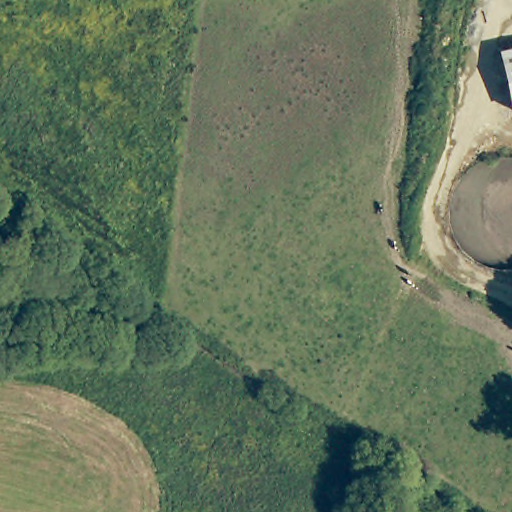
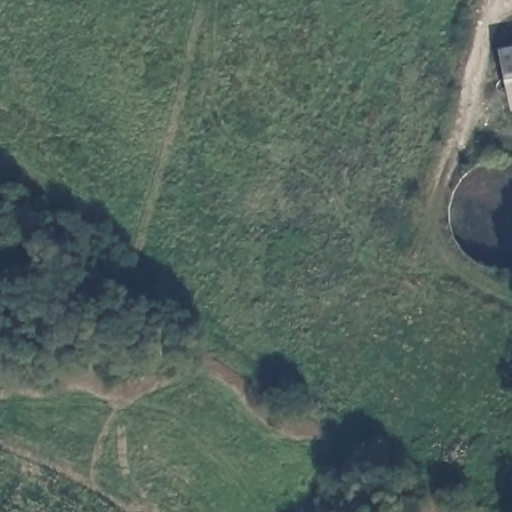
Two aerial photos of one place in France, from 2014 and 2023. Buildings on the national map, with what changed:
unchanged [(511,111),(498,49),(512,47),(512,111),(511,111)]

